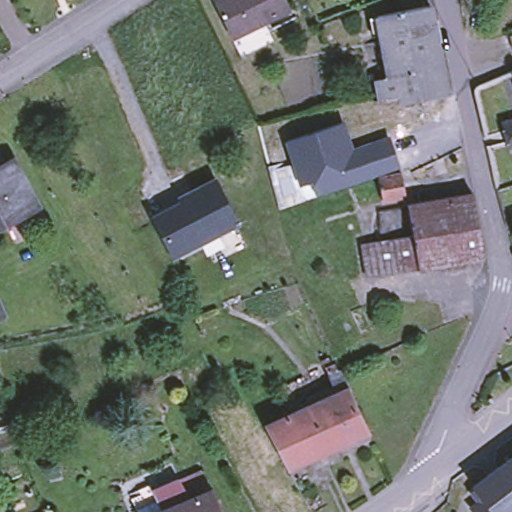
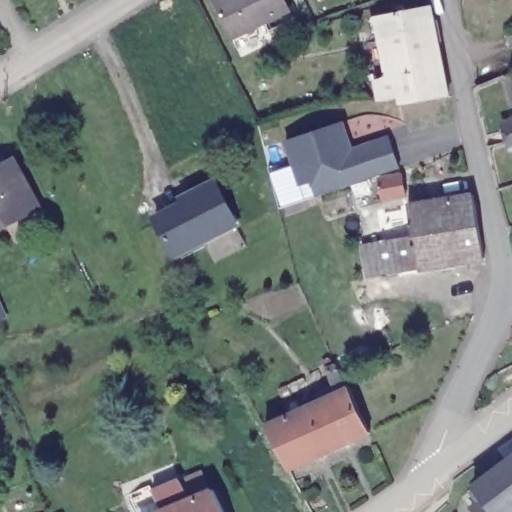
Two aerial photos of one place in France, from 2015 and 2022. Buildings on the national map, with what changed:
unchanged [(243,55),(235,37),(217,0),(288,0),(293,11),(268,22),(276,41),(243,55)]
unchanged [(430,7),(448,97),(400,105),(399,97),(378,101),(373,81),(386,77),(374,17),(430,7)]
unchanged [(507,35),(512,33),(512,48),(511,48),(507,35)]
unchanged [(299,187),(285,141),(345,121),(353,149),(391,136),(400,167),(316,197),(312,182),(299,187)]
unchanged [(0,218),(0,162),(6,159),(30,202),(0,218)]
unchanged [(382,201),(378,179),(401,175),(405,196),(382,201)]
unchanged [(172,209),(183,203),(184,203),(182,199),(192,193),(214,182),(233,219),(215,229),(218,233),(199,242),(189,247),(179,253),(174,255),(155,218),(161,215),(172,209)]
unchanged [(368,279),(361,245),(382,241),(377,212),(472,194),(483,259),(368,279)]
unchanged [(3,317),(0,319),(0,311),(3,317)]
unchanged [(342,396),(331,371),(337,367),(332,357),(335,355),(343,373),(347,372),(355,390),(374,432),(318,458),(296,416),(342,396)]
unchanged [(318,458),(292,470),(270,428),(296,416),(318,458)]
unchanged [(475,512),(466,496),(471,492),(464,479),(512,449),(512,503),(498,512),(475,512)]
unchanged [(164,500),(191,489),(212,480),(221,500),(223,499),(229,512),(143,512),(142,510),(164,500)]

